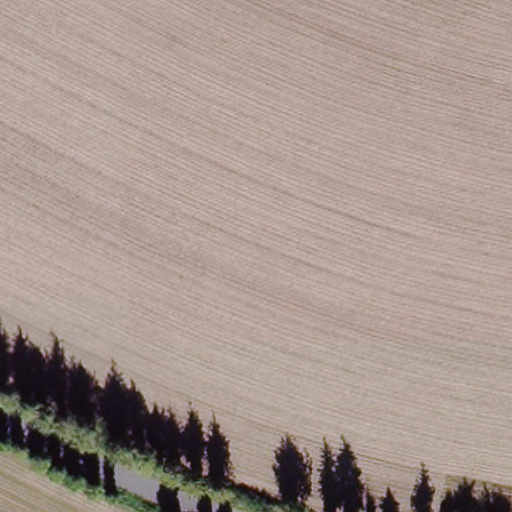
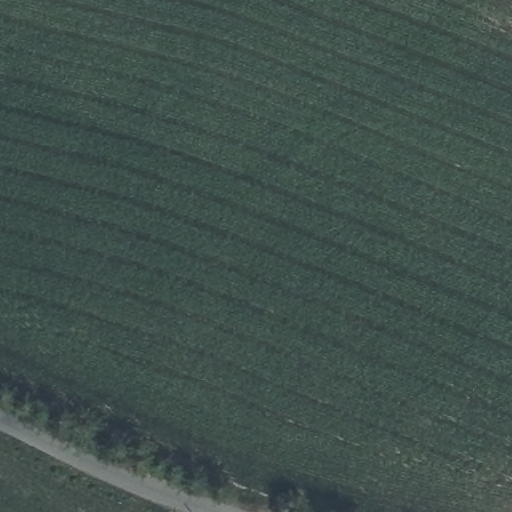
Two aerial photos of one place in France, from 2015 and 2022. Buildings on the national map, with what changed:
[]

